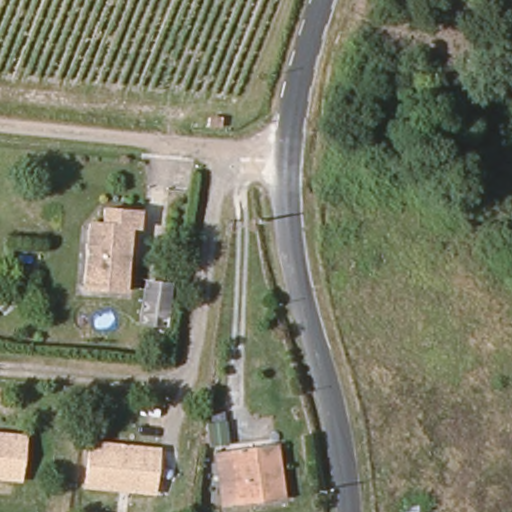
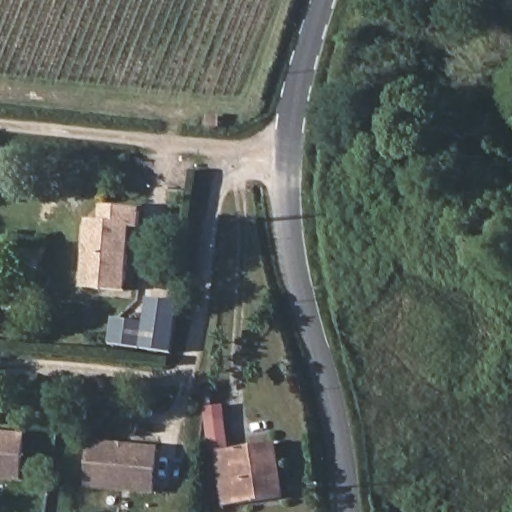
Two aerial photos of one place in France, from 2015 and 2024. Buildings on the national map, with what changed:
unchanged [(149,236),(139,236),(132,298),(94,294),(100,229),(112,230),(113,216),(151,220),(149,236)]
new [(152,301),(181,305),(178,329),(147,325),(152,301)]
new [(174,355),(113,346),(117,321),(178,329),(174,355)]
unchanged [(0,476),(0,434),(23,437),(17,478),(0,476)]
unchanged [(152,490),(85,482),(91,440),(156,448),(152,490)]
unchanged [(230,507),(219,451),(276,440),(285,496),(230,507)]

